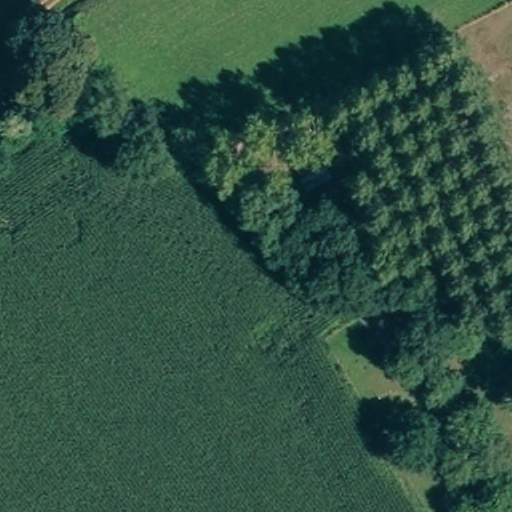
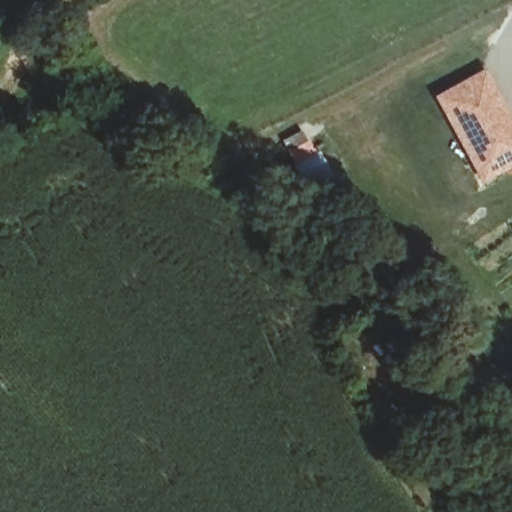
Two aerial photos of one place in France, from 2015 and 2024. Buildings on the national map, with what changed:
new [(512,116),(512,167),(481,185),(430,96),(484,67),(512,116)]
unchanged [(295,115),(323,168),(302,178),(275,124),(295,115)]

